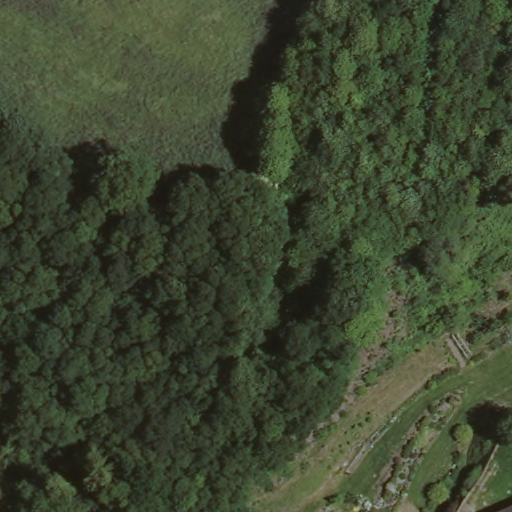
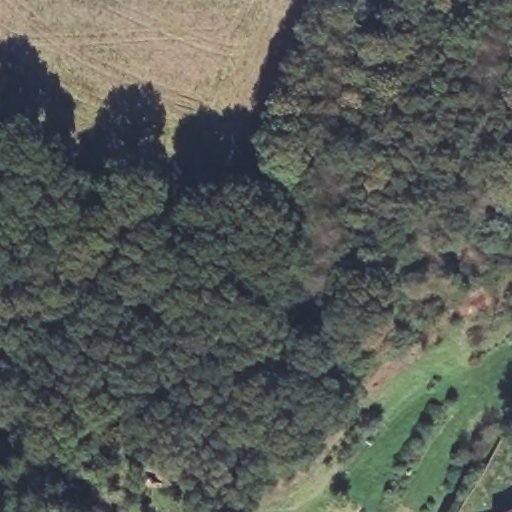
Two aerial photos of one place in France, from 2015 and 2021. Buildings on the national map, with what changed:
unchanged [(488,504),(512,495),(512,512),(491,512),(488,504)]

